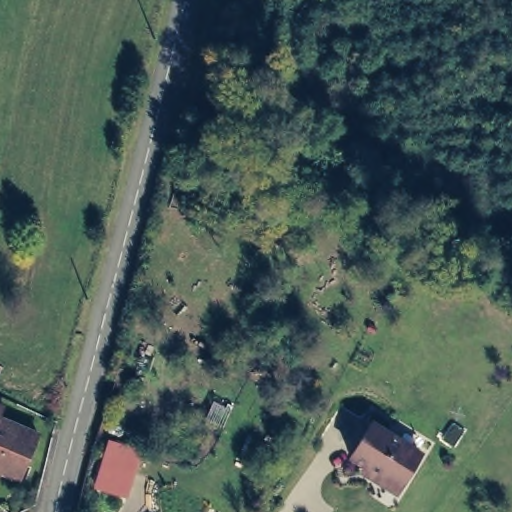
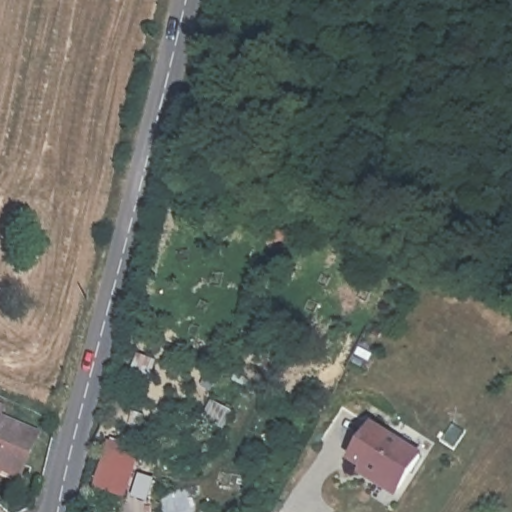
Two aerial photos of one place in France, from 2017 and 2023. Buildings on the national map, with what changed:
unchanged [(0,477),(0,407),(10,411),(5,422),(43,439),(24,482),(20,481),(19,485),(0,477)]
unchanged [(402,487),(393,489),(370,475),(367,467),(352,457),(372,424),(422,454),(402,487)]
unchanged [(134,458),(124,494),(102,488),(112,452),(134,458)]

